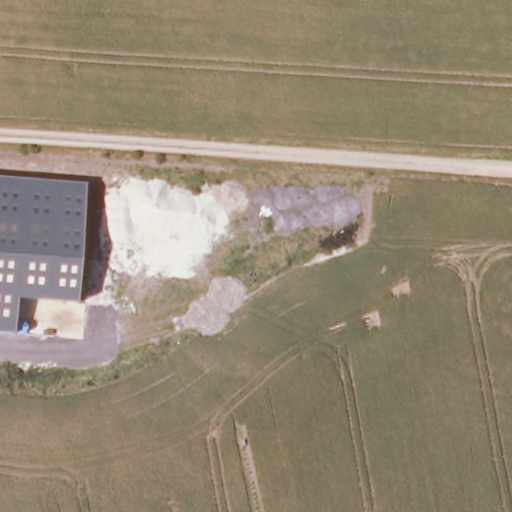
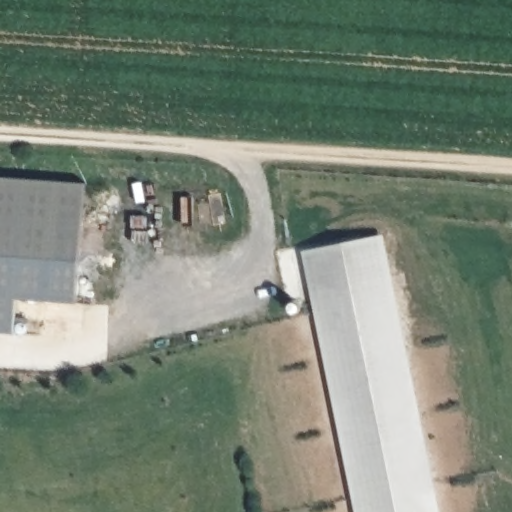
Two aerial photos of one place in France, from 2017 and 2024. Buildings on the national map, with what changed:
unchanged [(0,177),(86,183),(77,303),(17,299),(14,334),(0,333),(0,177)]
new [(387,212),(450,512),(368,512),(309,228),(387,212)]

